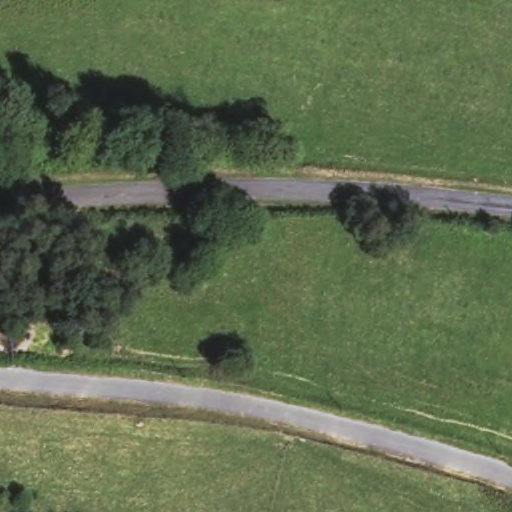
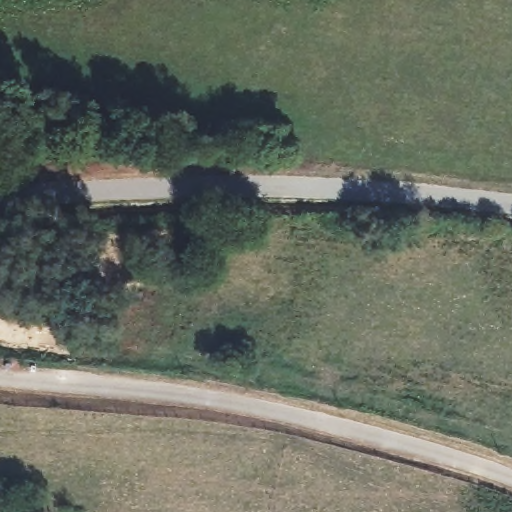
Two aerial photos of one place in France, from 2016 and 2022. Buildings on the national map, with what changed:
[]

